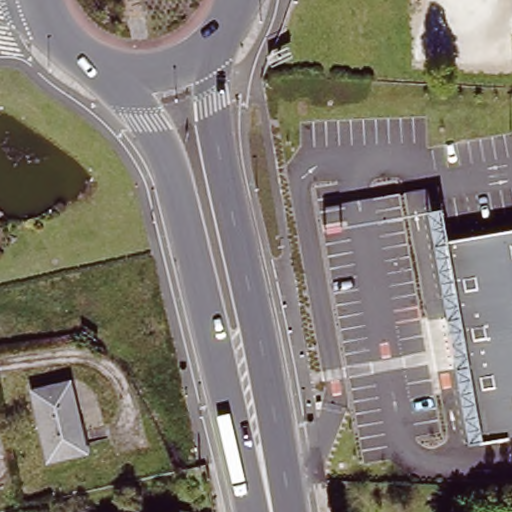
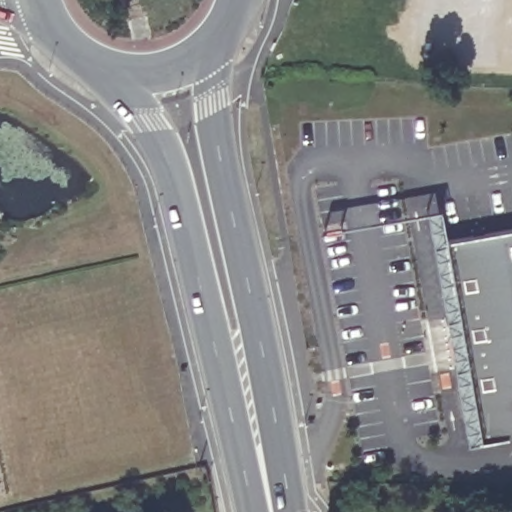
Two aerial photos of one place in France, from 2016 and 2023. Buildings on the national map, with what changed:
unchanged [(456,306),(446,238),(512,227),(512,435),(480,441),(456,306)]
demolished [(49,460),(31,390),(68,381),(85,450),(49,460)]

